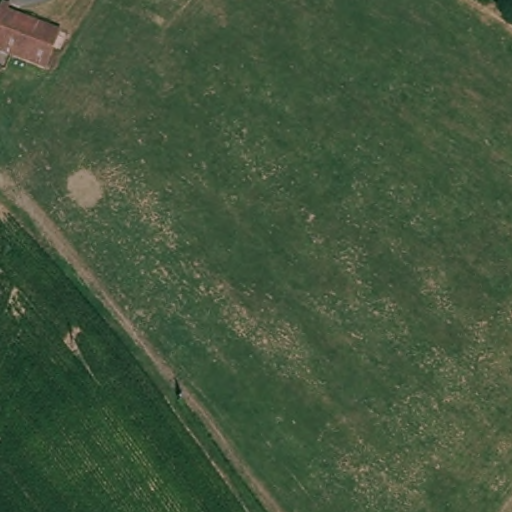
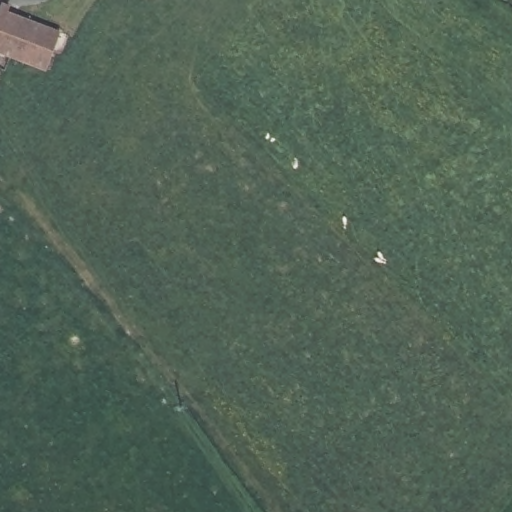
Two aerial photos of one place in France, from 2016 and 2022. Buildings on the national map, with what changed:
unchanged [(67,34),(66,38),(61,58),(54,57),(50,56),(0,47),(0,27),(1,21),(67,34)]

